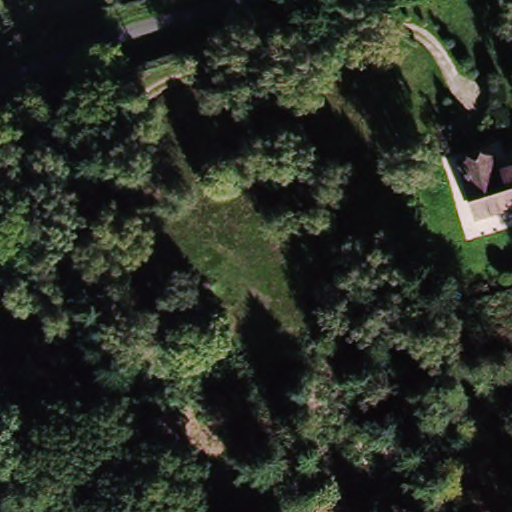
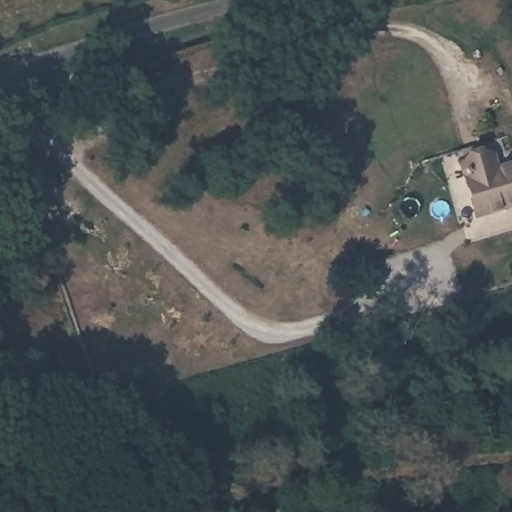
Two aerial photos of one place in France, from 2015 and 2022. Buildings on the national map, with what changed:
unchanged [(512,167),(512,204),(465,216),(452,166),(488,157),(492,172),(512,167)]

